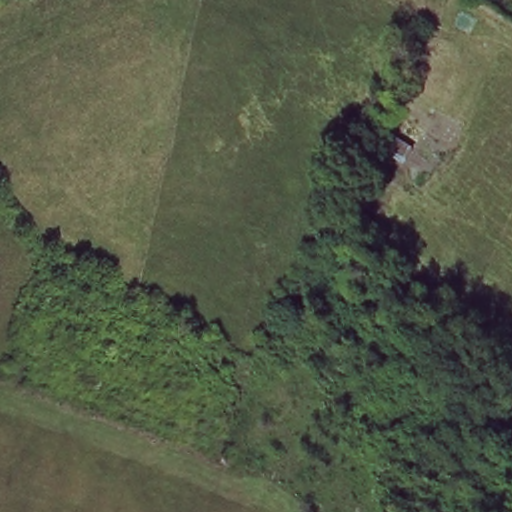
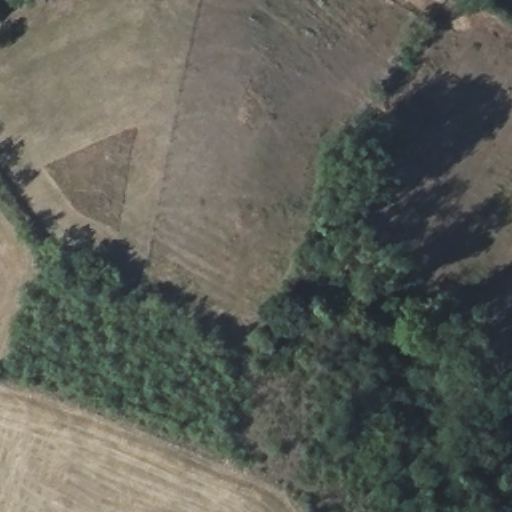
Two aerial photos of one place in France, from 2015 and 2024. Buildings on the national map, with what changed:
unchanged [(406,162),(380,148),(392,132),(416,145),(406,162)]

